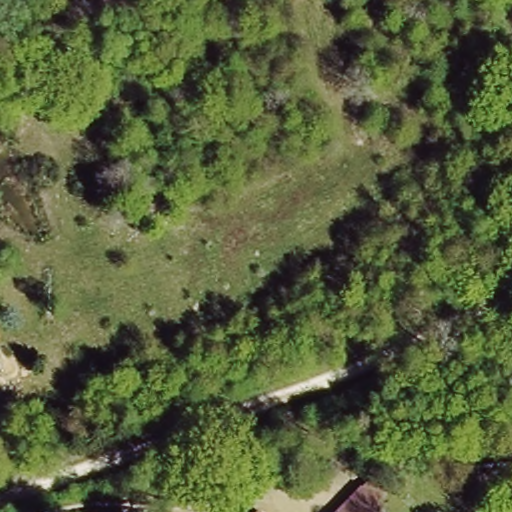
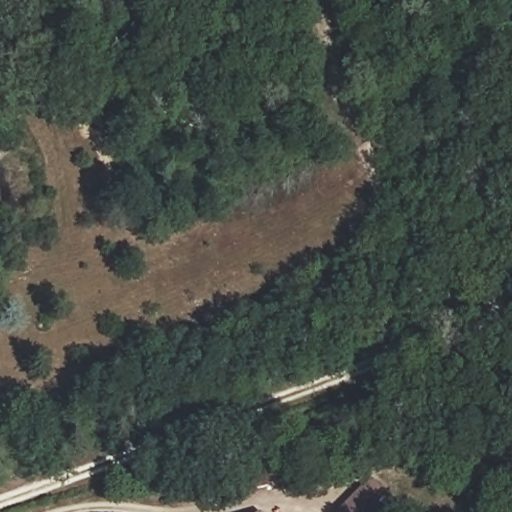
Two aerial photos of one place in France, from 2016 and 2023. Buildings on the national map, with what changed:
unchanged [(266,512),(251,512),(257,505),(266,512)]

